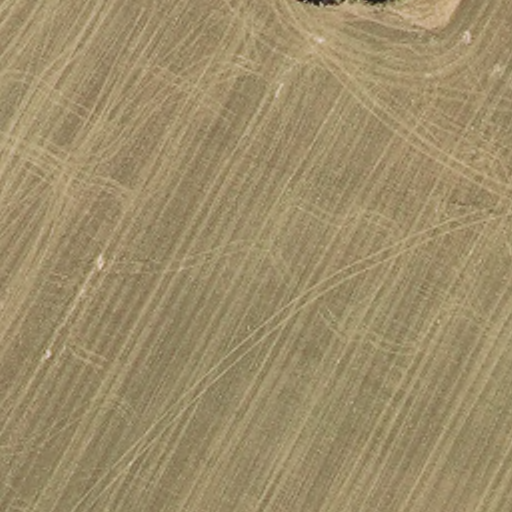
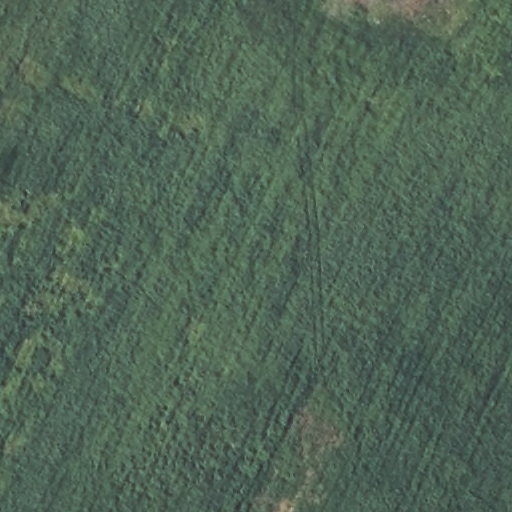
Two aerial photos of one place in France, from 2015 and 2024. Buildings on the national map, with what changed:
[]

